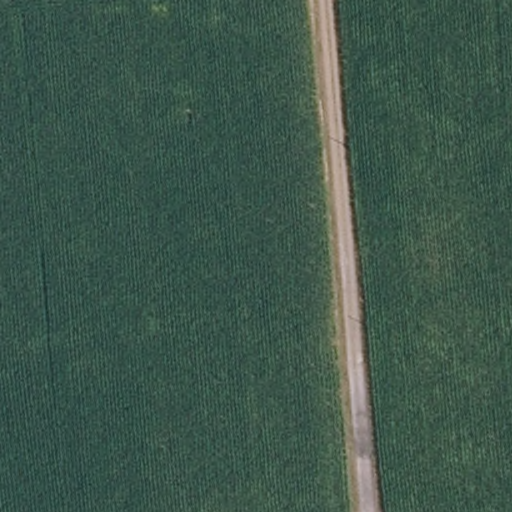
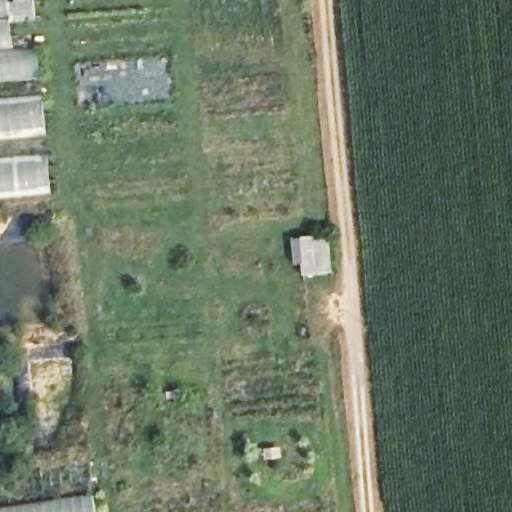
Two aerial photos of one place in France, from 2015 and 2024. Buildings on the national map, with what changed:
new [(26,0),(33,0),(35,21),(10,24),(14,51),(0,52),(0,0),(8,0),(8,3),(26,0)]
new [(0,86),(0,52),(39,49),(43,82),(0,86)]
new [(0,141),(0,101),(44,96),(48,137),(0,141)]
new [(0,203),(0,161),(50,156),(53,198),(0,203)]
new [(26,509),(21,509),(20,507),(92,495),(95,512),(27,512),(26,509)]

